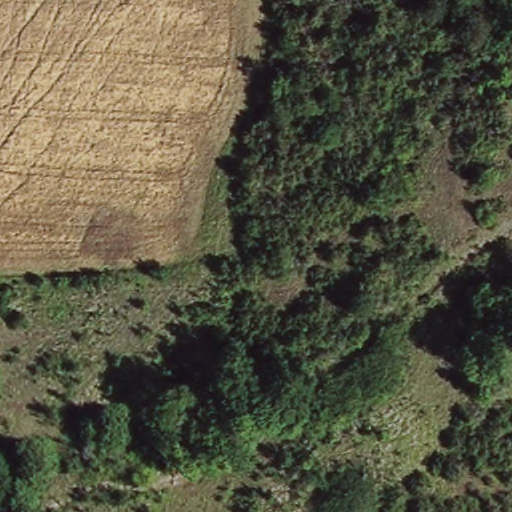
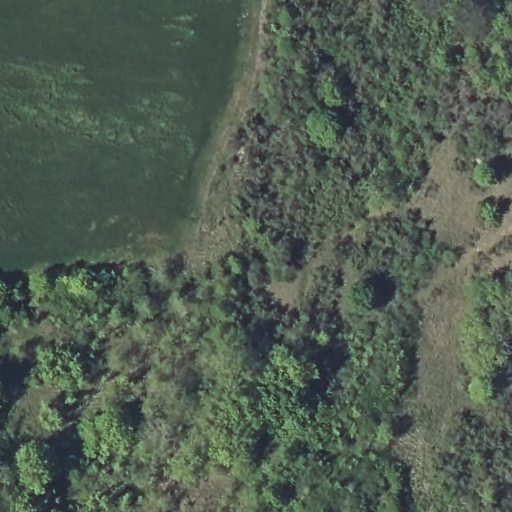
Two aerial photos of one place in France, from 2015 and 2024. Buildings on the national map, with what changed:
[]

